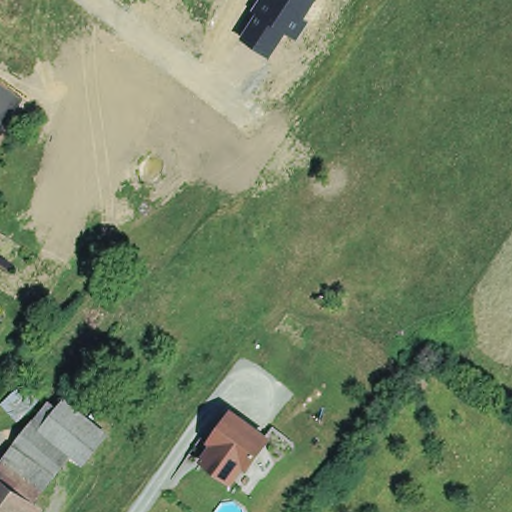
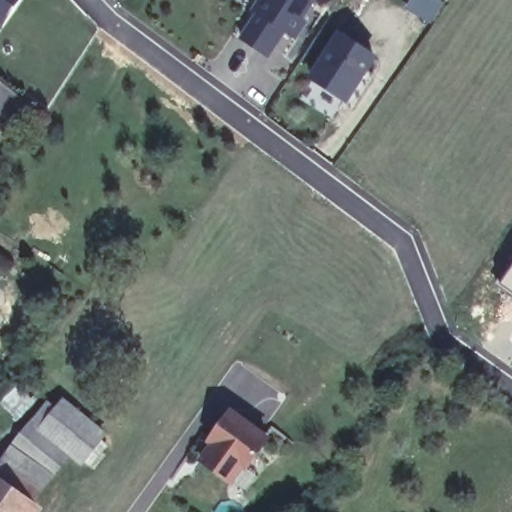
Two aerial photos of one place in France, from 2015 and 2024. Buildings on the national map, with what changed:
new [(0,25),(0,0),(21,0),(2,27),(0,25)]
unchanged [(255,15),(250,11),(258,0),(316,0),(305,20),(308,22),(296,40),(285,34),(270,57),(240,38),(255,15)]
new [(377,57),(347,102),(309,78),(338,32),(377,57)]
new [(512,265),(512,293),(499,283),(512,265)]
unchanged [(0,467),(50,406),(53,409),(60,401),(104,437),(83,463),(70,452),(30,501),(0,477),(0,467)]
unchanged [(272,443),(237,485),(202,458),(213,443),(208,440),(229,408),(272,443)]
unchanged [(32,502),(25,512),(0,512),(0,477),(30,501),(32,502)]

